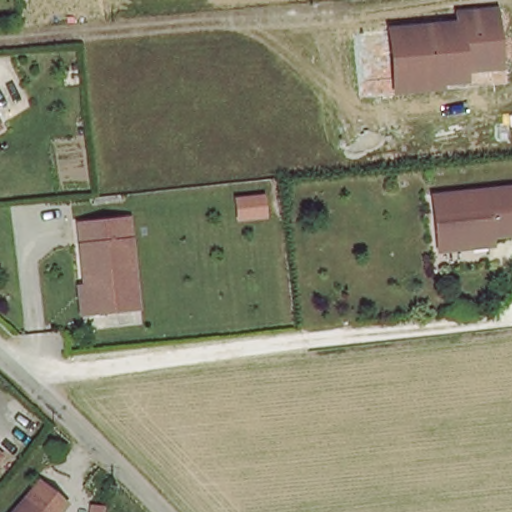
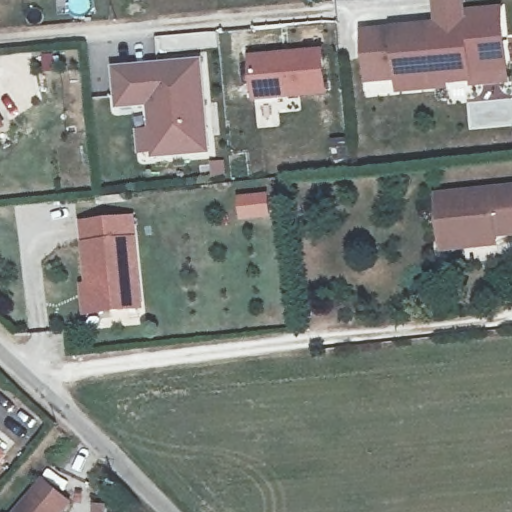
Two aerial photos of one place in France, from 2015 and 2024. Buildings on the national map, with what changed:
unchanged [(391,31),(438,26),(436,0),(462,0),(462,11),(499,8),(504,67),(471,72),(472,82),(444,84),(444,75),(395,79),(391,31)]
new [(368,81),(363,32),(391,31),(395,79),(368,81)]
new [(327,46),(329,95),(252,97),(250,50),(327,46)]
new [(202,58),(210,155),(152,157),(152,153),(138,154),(137,130),(147,129),(145,107),(115,110),(112,67),(202,58)]
unchanged [(2,129),(0,130),(0,124),(2,129)]
unchanged [(437,240),(432,192),(512,184),(512,227),(491,229),(491,234),(492,240),(438,246),(437,240)]
unchanged [(82,286),(88,286),(82,222),(130,217),(139,307),(98,311),(85,312),(82,286)]
unchanged [(2,458),(0,460),(0,457),(2,458)]
unchanged [(43,512),(19,512),(28,500),(43,512)]
new [(107,511),(107,512),(97,512),(97,510),(107,511)]

